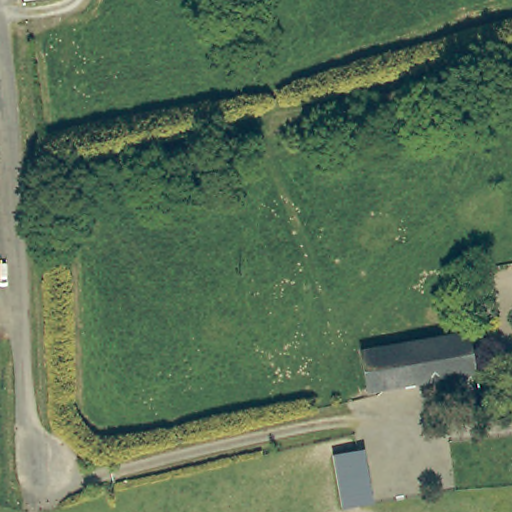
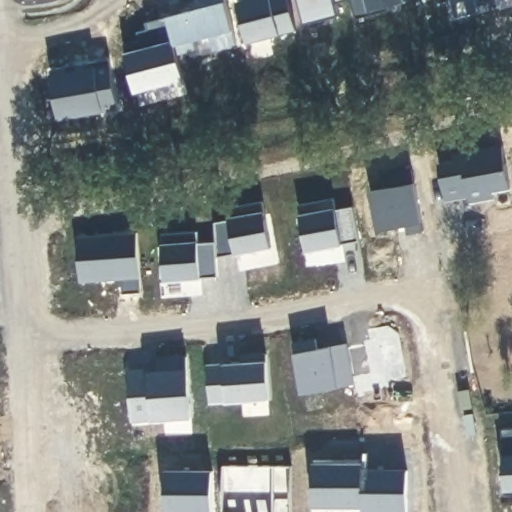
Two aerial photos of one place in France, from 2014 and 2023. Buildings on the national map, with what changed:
new [(202,0),(228,0),(240,46),(216,53),(212,39),(196,43),(198,52),(180,56),(170,18),(204,9),(202,0)]
new [(291,0),(300,32),(251,45),(241,4),(254,0),(291,0)]
new [(390,8),(357,16),(352,0),(399,0),(388,3),(390,8)]
new [(482,7),(480,0),(500,0),(501,2),(482,7)]
new [(142,41),(140,33),(150,31),(148,24),(170,18),(180,56),(187,82),(138,94),(126,46),(142,41)]
new [(107,61),(116,110),(56,121),(48,71),(107,61)]
new [(458,163),(457,158),(506,149),(512,182),(512,190),(490,195),(492,201),(473,204),(472,198),(448,202),(442,166),(458,163)]
new [(396,190),(393,176),(415,172),(426,234),(410,237),(408,228),(381,233),(373,194),(396,190)]
new [(336,202),(338,213),(356,210),(362,245),(309,254),(301,208),(336,202)]
new [(232,223),(230,212),(266,205),(274,251),(219,261),(218,245),(217,226),(232,223)]
new [(139,235),(142,295),(124,296),(123,281),(82,284),(79,239),(139,235)]
new [(200,235),(201,247),(218,245),(219,261),(220,281),(167,284),(163,237),(200,235)]
demolished [(362,350),(467,332),(475,373),(367,392),(362,350)]
new [(317,343),(320,353),(349,347),(356,387),(303,397),(294,347),(317,343)]
new [(243,366),(242,359),(268,357),(271,402),(211,406),(208,368),(243,366)]
new [(151,372),(151,375),(159,374),(158,362),(187,359),(192,420),(132,423),(129,374),(151,372)]
demolished [(369,496),(340,503),(331,456),(359,447),(369,496)]
new [(314,468),(364,469),(364,475),(364,512),(347,512),(347,510),(313,510),(314,468)]
new [(166,475),(213,476),(213,512),(166,512),(166,475)]
new [(364,475),(409,476),(409,512),(364,512),(364,475)]

